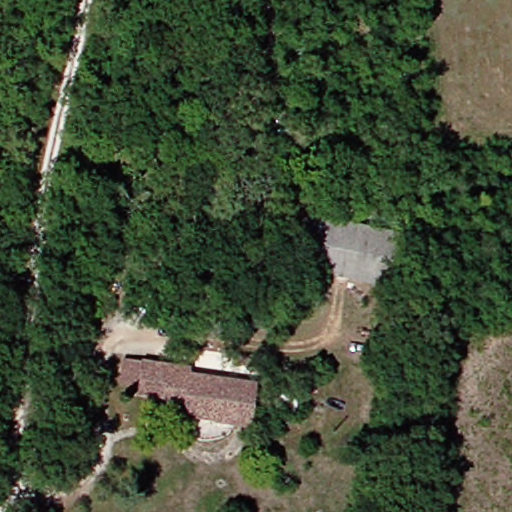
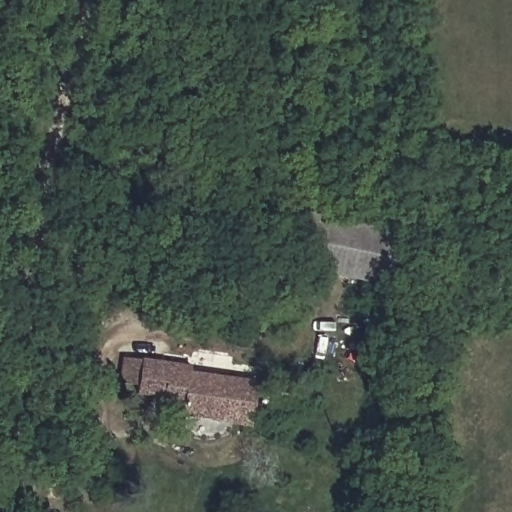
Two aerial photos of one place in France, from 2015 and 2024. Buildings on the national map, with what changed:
unchanged [(382,285),(299,269),(292,268),(303,214),(305,215),(335,222),(391,236),(382,285)]
unchanged [(250,427),(202,423),(202,415),(132,407),(132,393),(115,391),(116,363),(206,371),(205,384),(250,389),(250,427)]

